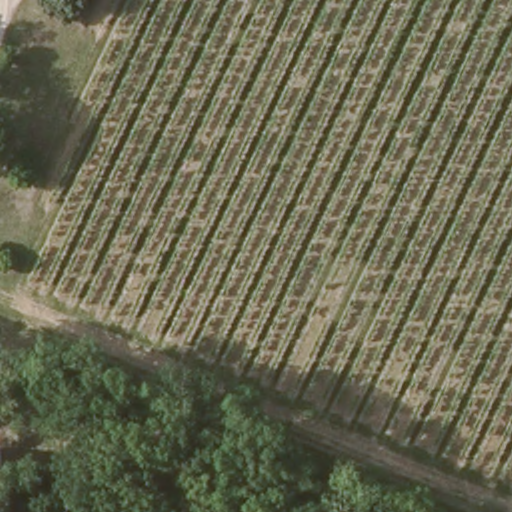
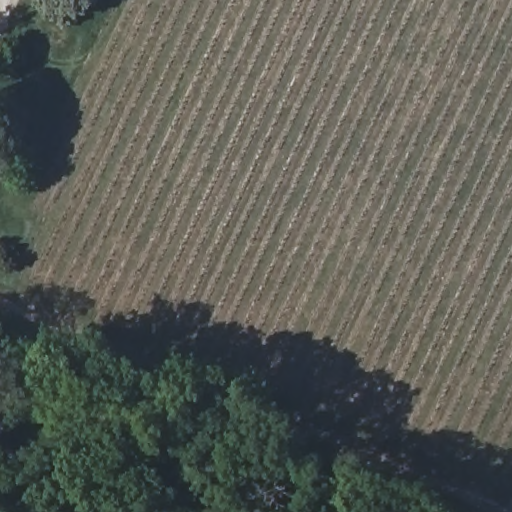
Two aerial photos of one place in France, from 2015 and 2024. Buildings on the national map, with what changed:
[]

